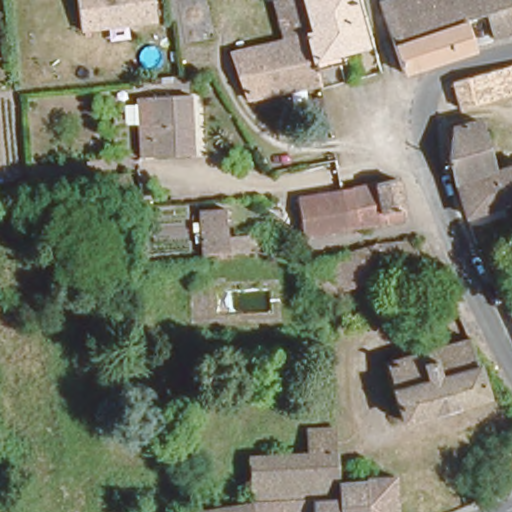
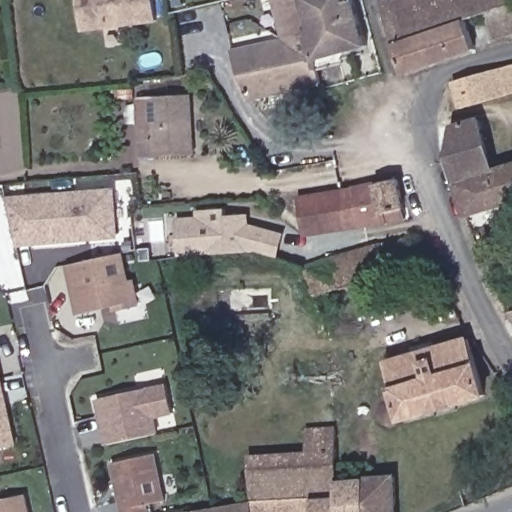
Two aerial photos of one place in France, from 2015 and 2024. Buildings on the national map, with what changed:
unchanged [(76,31),(76,0),(149,0),(149,23),(76,31)]
unchanged [(298,32),(305,56),(311,55),(313,61),(317,79),(250,96),(242,65),(241,65),(237,50),(260,42),(277,38),(274,30),(268,0),(295,0),(305,31),(298,32)]
unchanged [(313,61),(311,55),(305,56),(298,32),(305,31),(295,0),(352,0),(363,39),(365,45),(340,52),(313,61)]
unchanged [(386,0),(512,0),(512,33),(494,37),(488,15),(481,17),(464,22),(474,51),(404,70),(401,62),(381,2),(386,0)]
unchanged [(450,77),(496,65),(512,60),(512,96),(504,97),(460,109),(450,77)]
unchanged [(186,95),(187,154),(135,155),(134,96),(186,95)]
unchanged [(480,117),(497,172),(512,168),(512,201),(467,216),(454,161),(458,122),(480,117)]
unchanged [(382,220),(359,223),(354,224),(352,208),(361,207),(358,187),(395,181),(399,203),(402,217),(382,220)]
unchanged [(295,195),(346,189),(358,187),(361,207),(352,208),(354,224),(301,231),(295,195)]
new [(115,197),(119,239),(15,247),(7,202),(109,193),(115,197)]
new [(195,216),(195,211),(225,209),(225,216),(249,214),(249,223),(281,232),(274,257),(251,252),(178,257),(174,218),(195,216)]
demolished [(195,210),(217,209),(220,231),(238,231),(239,242),(241,242),(241,247),(198,245),(195,210)]
unchanged [(410,275),(399,257),(383,261),(384,272),(310,290),(301,266),(351,253),(362,250),(408,244),(423,268),(410,275)]
new [(116,310),(115,305),(78,312),(68,266),(122,254),(129,282),(133,281),(139,305),(116,310)]
unchanged [(484,391),(448,402),(400,417),(384,362),(469,336),(484,391)]
new [(0,448),(0,379),(14,445),(0,448)]
new [(108,445),(98,401),(167,385),(174,413),(154,418),(158,434),(108,445)]
unchanged [(309,450),(308,426),(333,425),(334,448),(336,467),(327,468),(293,472),(295,500),(254,504),(250,454),(309,450)]
new [(114,463),(155,454),(164,501),(146,505),(148,512),(123,512),(114,463)]
unchanged [(327,468),(336,467),(337,476),(362,474),(368,512),(313,512),(311,498),(295,500),(293,472),(327,468)]
unchanged [(362,474),(392,472),(394,512),(368,512),(362,474)]
new [(0,501),(24,496),(28,512),(0,512),(0,501)]
new [(295,500),(311,498),(313,512),(255,512),(254,504),(295,500)]
unchanged [(189,511),(248,505),(254,504),(255,512),(189,512),(189,511)]

